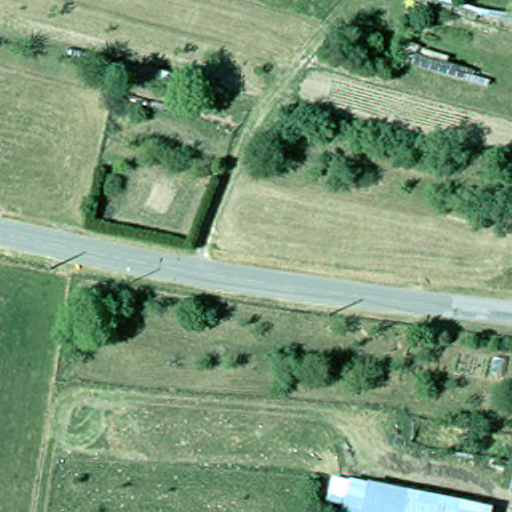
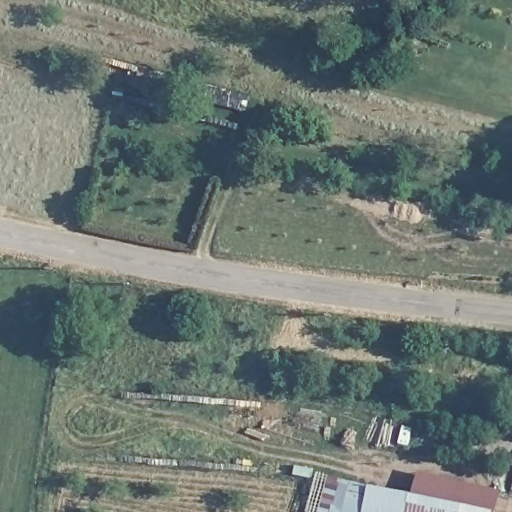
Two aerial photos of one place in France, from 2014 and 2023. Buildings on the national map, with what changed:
unchanged [(352,472),(495,505),(493,512),(337,512),(352,472)]

